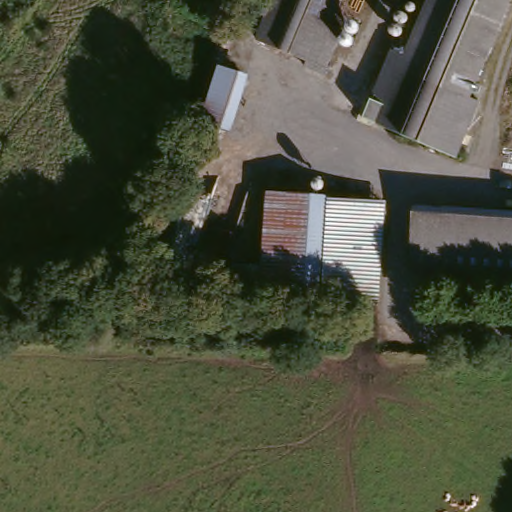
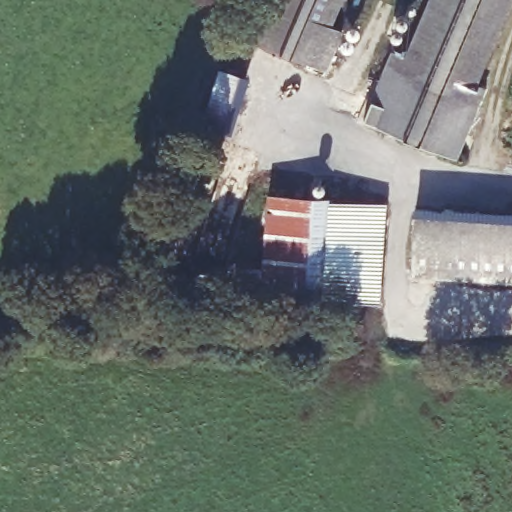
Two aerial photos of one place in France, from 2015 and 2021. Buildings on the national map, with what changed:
unchanged [(276,0),(339,0),(328,29),(339,34),(326,70),(260,41),(276,0)]
unchanged [(402,60),(427,0),(511,0),(470,102),(493,111),(469,171),(361,125),(389,55),(402,60)]
unchanged [(242,82),(226,129),(206,123),(221,74),(242,82)]
unchanged [(319,309),(233,301),(235,276),(259,277),(266,204),(324,209),(319,309)]
unchanged [(379,214),(376,262),(371,309),(333,309),(319,309),(324,209),(379,214)]
unchanged [(403,279),(412,210),(512,217),(512,285),(403,279)]

